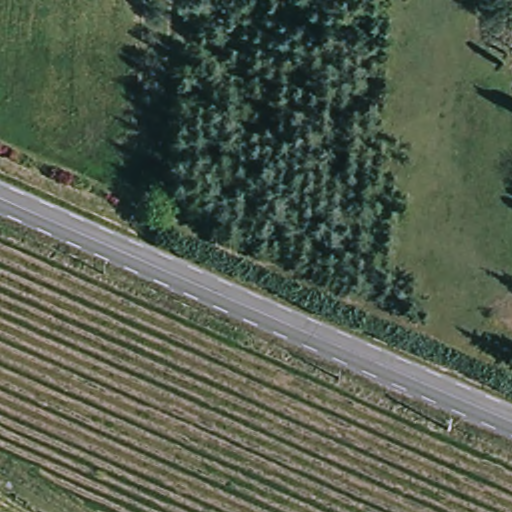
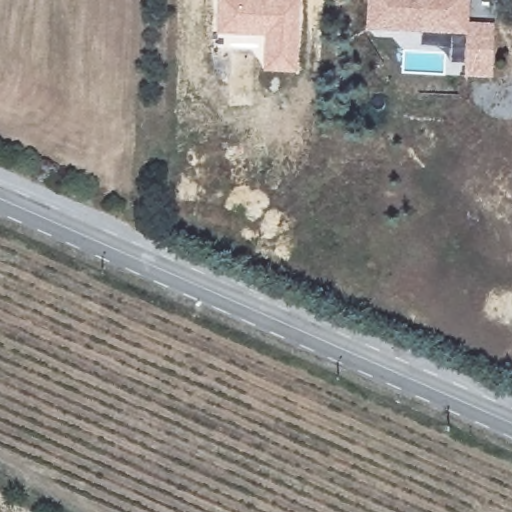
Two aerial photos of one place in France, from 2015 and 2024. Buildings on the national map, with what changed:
new [(264,72),(266,37),(218,36),(219,0),(301,0),(298,74),(264,72)]
new [(466,77),(467,36),(367,31),(369,0),(471,0),(470,24),(495,24),(494,79),(466,77)]

